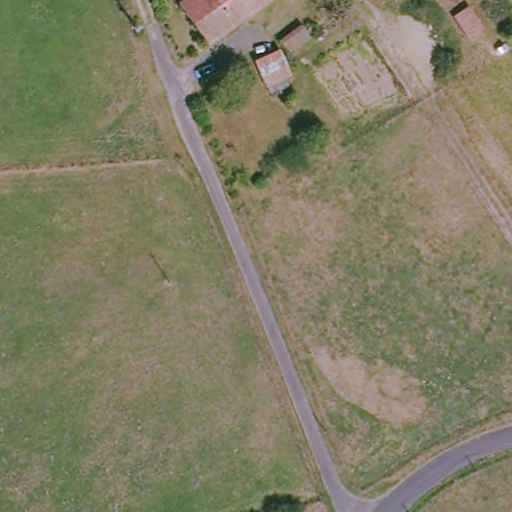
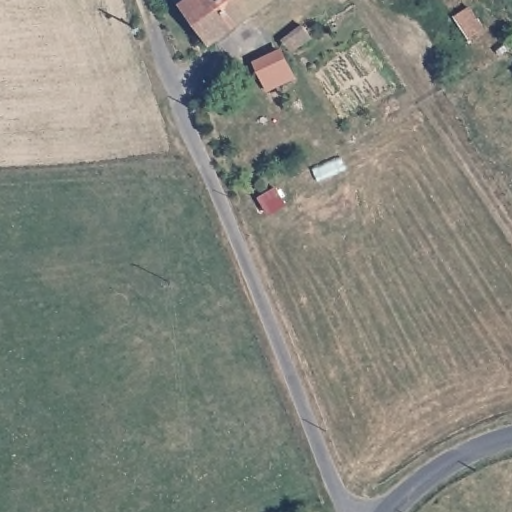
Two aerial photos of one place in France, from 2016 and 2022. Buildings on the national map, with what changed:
unchanged [(177,7),(186,0),(272,0),(238,25),(209,47),(177,7)]
unchanged [(475,2),(489,23),(476,32),(462,11),(475,2)]
unchanged [(302,21),(312,32),(291,48),(281,36),(302,21)]
unchanged [(281,47),(288,63),(291,71),(285,74),(291,85),(280,90),(278,86),(269,90),(260,71),(255,59),(281,47)]

